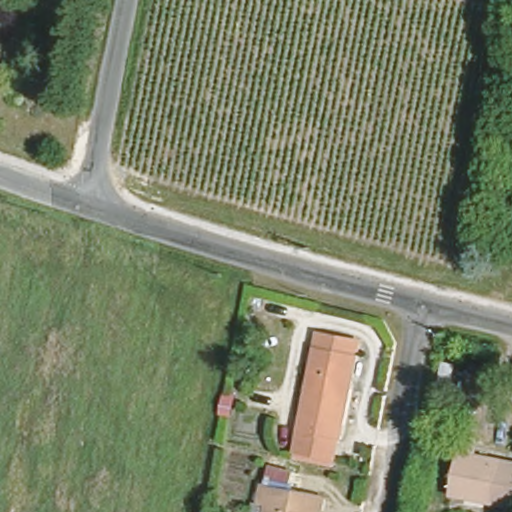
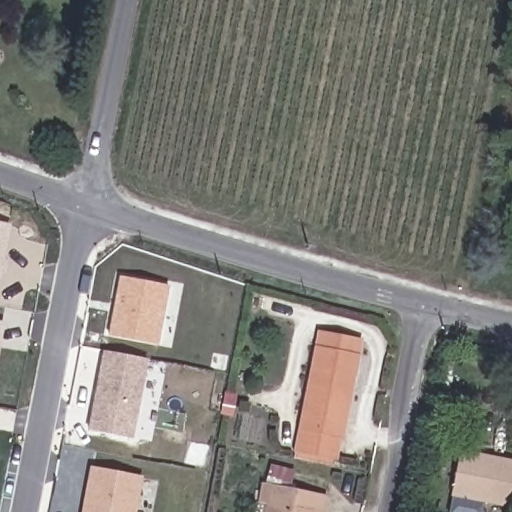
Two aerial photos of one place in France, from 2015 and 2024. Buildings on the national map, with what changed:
new [(11,226),(0,282),(0,224),(11,226)]
new [(119,275),(171,285),(159,346),(108,336),(119,275)]
new [(4,323),(0,344),(0,323),(4,323)]
unchanged [(295,444),(297,436),(318,332),(355,339),(360,340),(353,374),(343,423),(342,422),(337,444),(336,452),(295,444)]
new [(106,351),(148,359),(133,438),(91,430),(106,351)]
unchanged [(512,462),(512,506),(452,494),(461,448),(478,451),(477,455),(512,462)]
new [(144,476),(138,512),(85,512),(94,468),(144,476)]
unchanged [(255,497),(259,479),(312,488),(322,490),(318,512),(261,512),(264,499),(255,497)]

